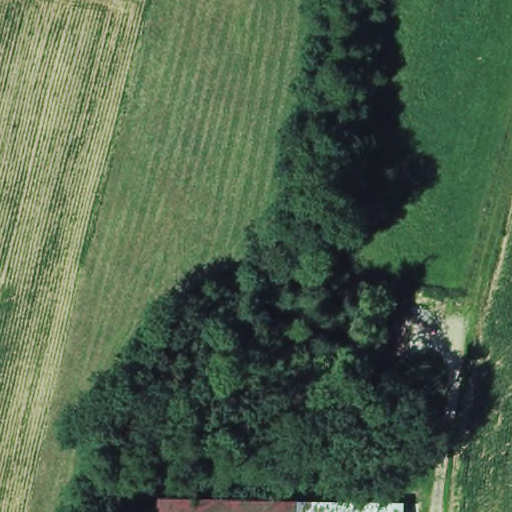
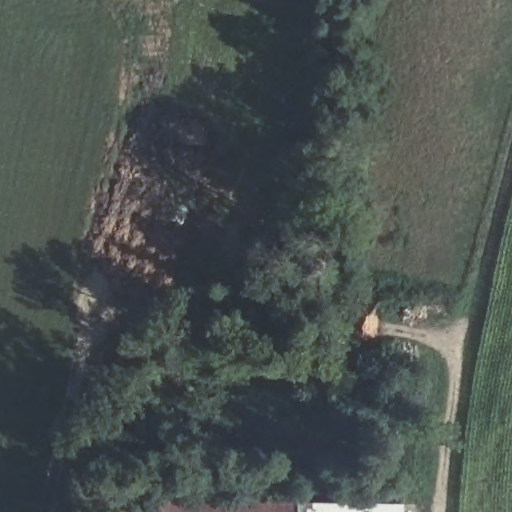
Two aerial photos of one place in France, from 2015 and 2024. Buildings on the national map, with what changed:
unchanged [(406,512),(159,512),(159,502),(406,504),(406,512)]

